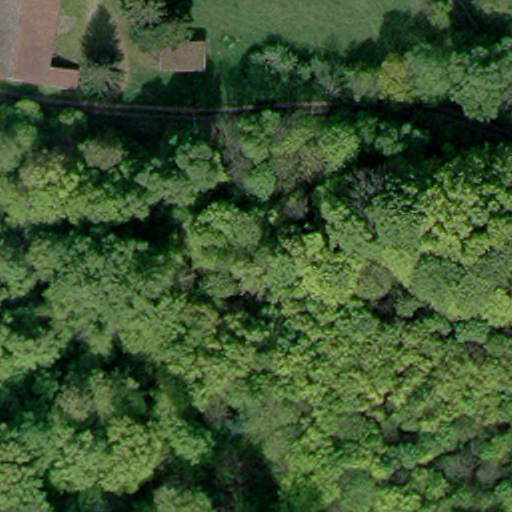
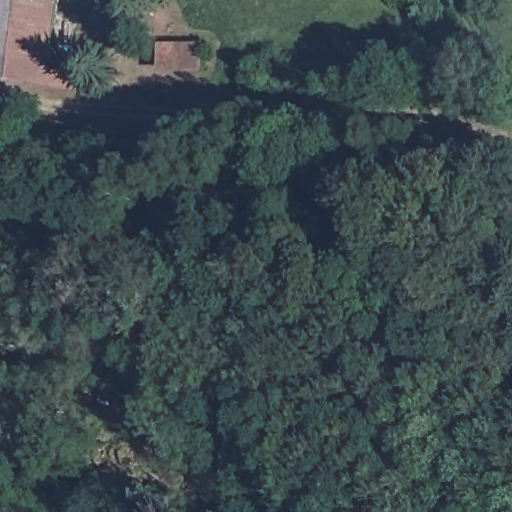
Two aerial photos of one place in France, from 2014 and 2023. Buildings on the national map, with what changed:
unchanged [(41,84),(42,79),(23,76),(23,82),(14,81),(15,75),(0,72),(0,0),(55,0),(43,69),(73,71),(72,87),(41,84)]
unchanged [(202,64),(160,68),(158,38),(200,39),(202,64)]

